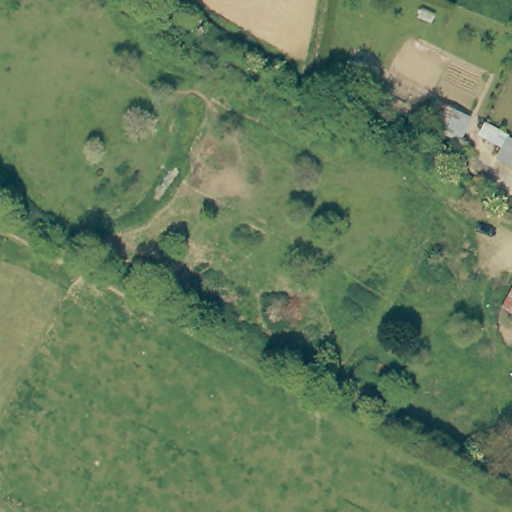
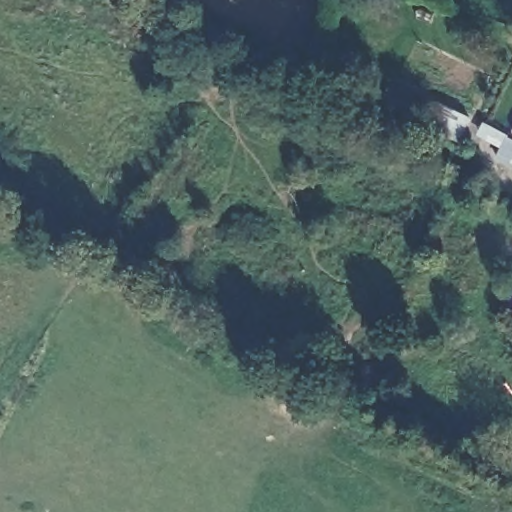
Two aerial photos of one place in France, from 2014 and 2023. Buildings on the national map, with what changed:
unchanged [(512,278),(512,315),(496,305),(512,278)]

